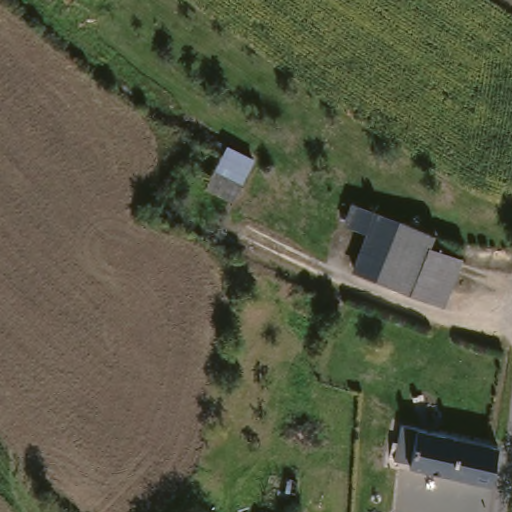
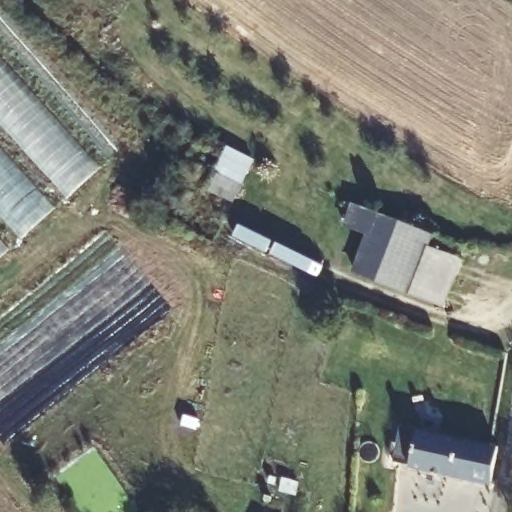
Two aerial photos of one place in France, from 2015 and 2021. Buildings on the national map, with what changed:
new [(0,258),(0,58),(99,169),(0,258)]
unchanged [(256,157),(235,198),(207,183),(227,144),(256,157)]
unchanged [(358,274),(373,237),(352,228),(361,202),(408,220),(384,285),(358,274)]
unchanged [(441,232),(435,250),(463,261),(445,307),(384,285),(408,220),(441,232)]
unchanged [(401,466),(401,459),(385,455),(391,422),(412,424),(412,427),(425,429),(415,467),(401,466)]
unchanged [(415,467),(425,429),(504,443),(498,481),(415,467)]

